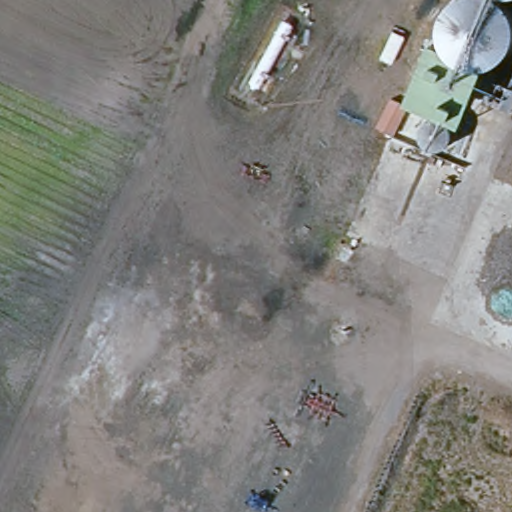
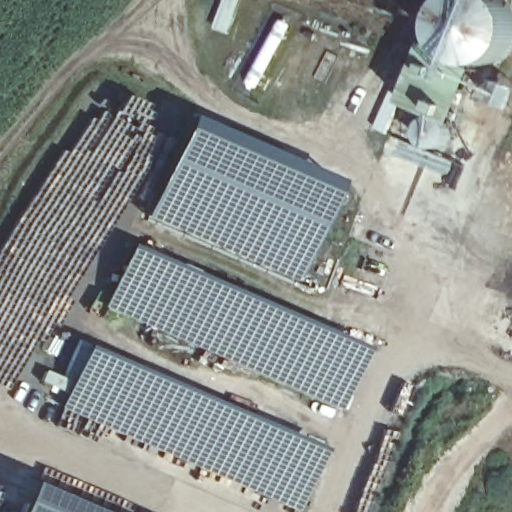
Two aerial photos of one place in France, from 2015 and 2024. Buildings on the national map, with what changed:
unchanged [(444,17),(448,2),(452,0),(506,0),(512,4),(512,6),(512,52),(506,58),(491,64),(479,66),(464,64),(449,50),(443,33),(444,17)]
unchanged [(409,111),(432,51),(488,75),(464,134),(409,111)]
unchanged [(502,89),(512,94),(512,117),(494,109),(502,89)]
unchanged [(379,134),(393,106),(411,115),(398,143),(379,134)]
new [(146,216),(189,116),(340,181),(294,281),(146,216)]
unchanged [(425,152),(422,144),(423,136),(428,129),(436,126),(444,126),(450,130),(454,138),(453,147),(450,153),(445,157),(439,158),(432,157),(425,152)]
new [(104,307),(131,244),(368,347),(341,409),(104,307)]
new [(61,407),(86,345),(325,448),(296,509),(61,407)]
new [(30,482),(98,512),(17,512),(30,482)]

